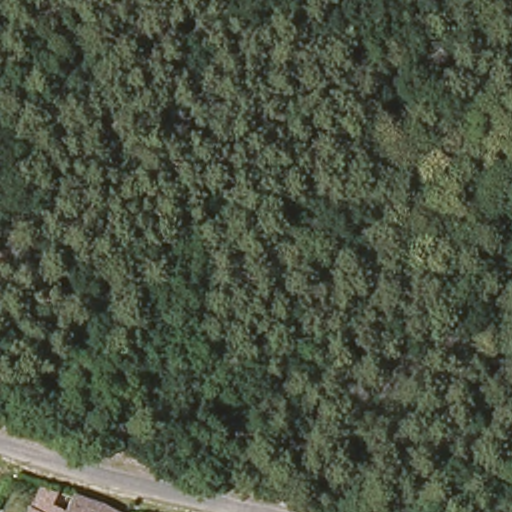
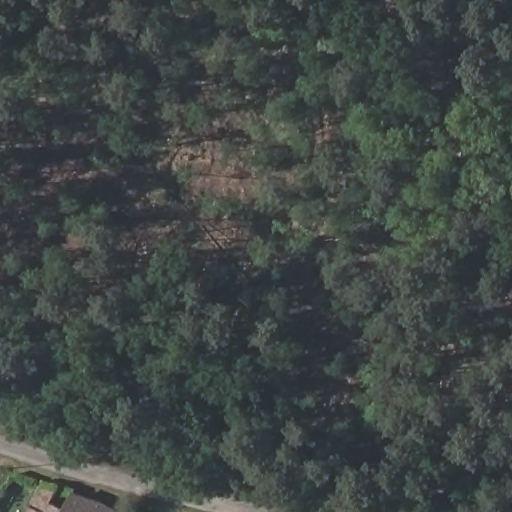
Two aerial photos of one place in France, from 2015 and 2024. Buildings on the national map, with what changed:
unchanged [(78,498),(108,507),(107,509),(113,512),(70,512),(78,498)]

